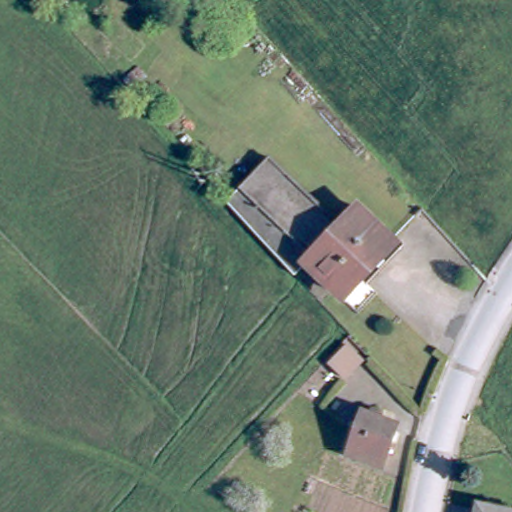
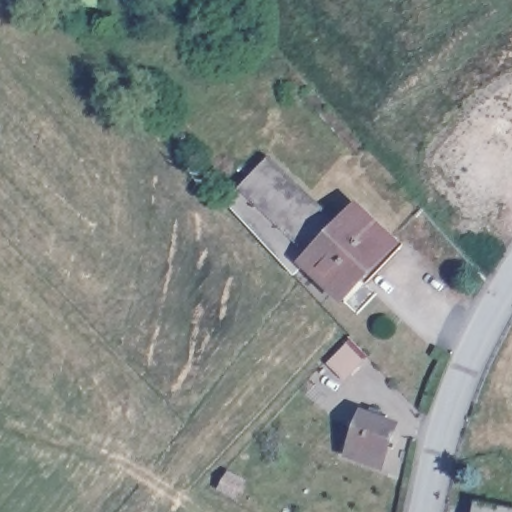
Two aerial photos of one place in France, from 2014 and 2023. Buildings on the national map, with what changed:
unchanged [(277,163),(312,195),(265,238),(235,205),(277,163)]
unchanged [(317,266),(304,279),(265,238),(312,195),(350,229),(317,266)]
unchanged [(400,246),(350,299),(317,266),(350,229),(367,212),(400,246)]
unchanged [(343,380),(322,361),(348,333),(369,354),(343,380)]
unchanged [(358,411),(368,414),(372,405),(385,410),(382,417),(395,424),(381,464),(344,450),(358,411)]
unchanged [(486,509),(499,512),(485,512),(486,509)]

